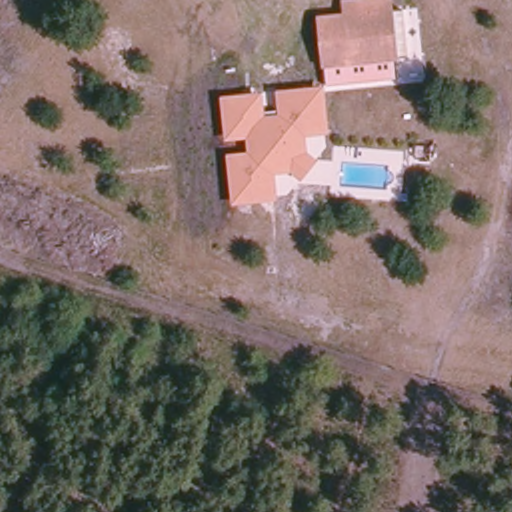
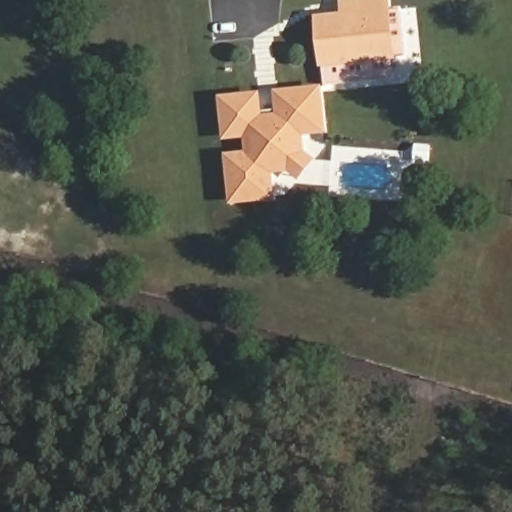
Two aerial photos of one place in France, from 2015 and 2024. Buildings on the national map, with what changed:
unchanged [(343,4),(367,2),(382,2),(388,2),(391,13),(402,13),(404,63),(321,65),(317,18),(326,17),(343,16),(343,4)]
unchanged [(396,79),(326,86),(325,65),(394,63),(396,79)]
unchanged [(328,134),(306,136),(307,152),(317,160),(302,181),(292,173),(276,174),(278,200),(231,205),(227,154),(248,152),(247,139),(225,140),(221,96),(262,92),(264,111),(278,110),(277,90),(324,86),(328,134)]

